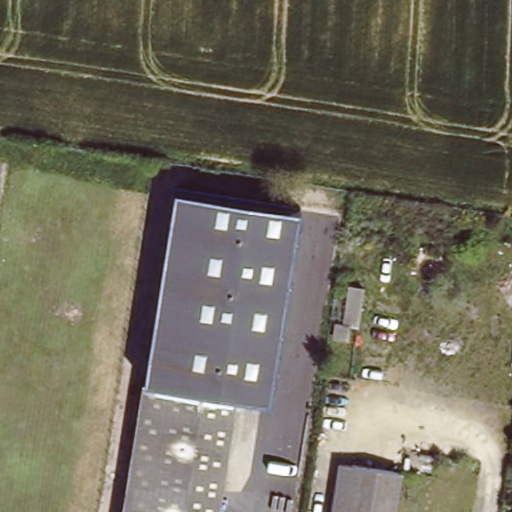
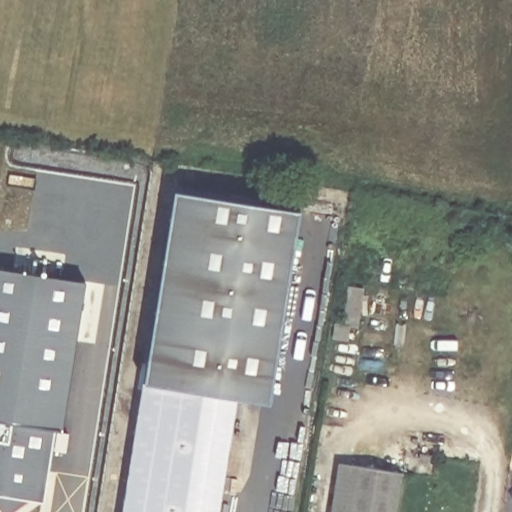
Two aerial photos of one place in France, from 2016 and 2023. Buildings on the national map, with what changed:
unchanged [(296,209),(267,398),(234,394),(145,381),(175,192),(296,209)]
new [(2,512),(0,509),(0,439),(8,440),(8,420),(0,419),(0,269),(86,282),(62,428),(51,427),(43,501),(29,498),(10,512),(2,512)]
unchanged [(125,512),(145,381),(234,394),(215,512),(125,512)]
unchanged [(353,462),(402,467),(395,512),(332,512),(340,460),(353,462)]

